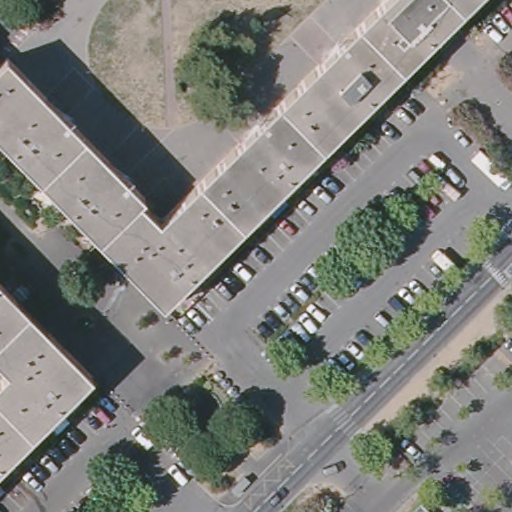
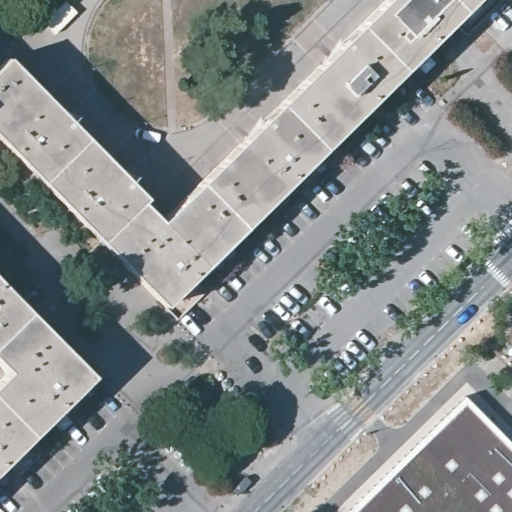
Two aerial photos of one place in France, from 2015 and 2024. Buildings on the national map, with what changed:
unchanged [(446,20),(438,27),(158,301),(115,256),(108,249),(0,141),(0,55),(3,52),(141,195),(139,198),(156,216),(377,0),(466,0),(446,20)]
unchanged [(0,359),(0,280),(27,307),(45,326),(90,371),(0,460),(0,372),(6,366),(0,359)]
new [(464,395),(512,445),(512,512),(344,512),(402,457),(464,395)]
demolished [(427,512),(419,512),(423,508),(427,512)]

